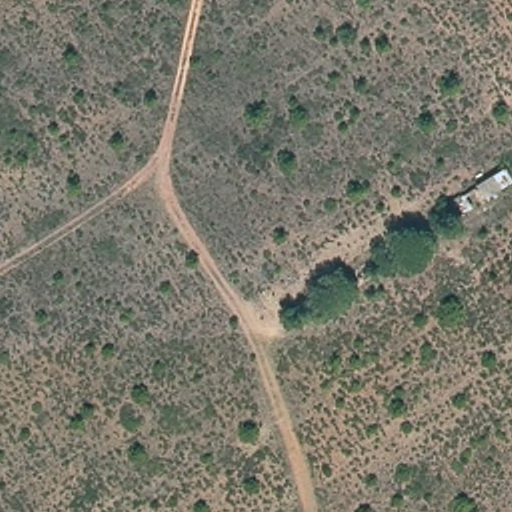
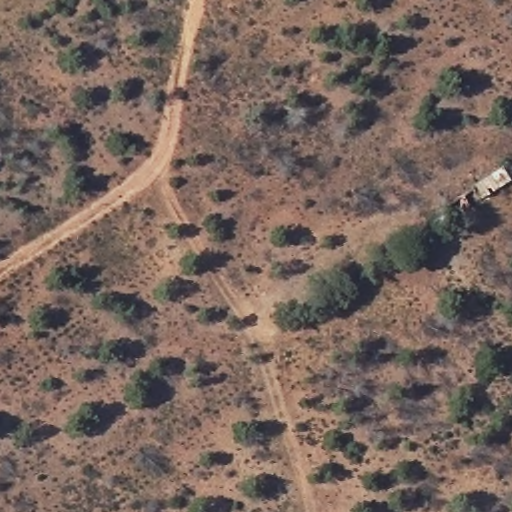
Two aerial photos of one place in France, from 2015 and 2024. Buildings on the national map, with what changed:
unchanged [(511,182),(479,204),(469,189),(501,168),(511,182)]

